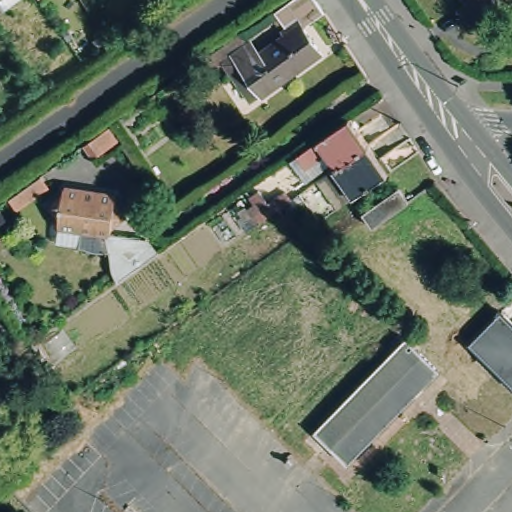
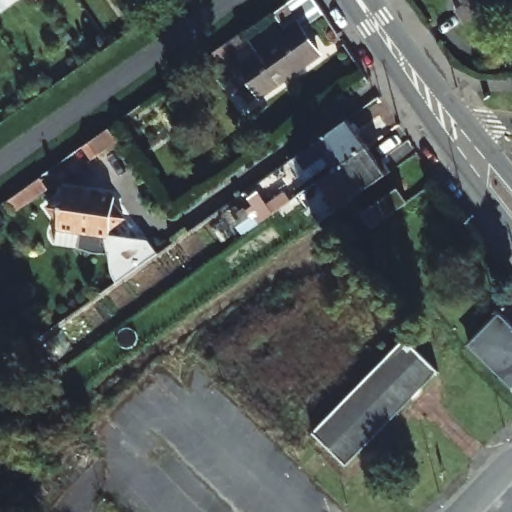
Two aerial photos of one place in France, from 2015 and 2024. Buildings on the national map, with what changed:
unchanged [(29,0),(30,2),(0,24),(0,0),(29,0)]
unchanged [(300,27),(319,54),(249,102),(231,74),(240,67),(233,56),(252,43),(260,55),(290,34),(273,10),(287,0),(316,0),(323,12),(300,27)]
unchanged [(457,14),(468,6),(464,0),(505,0),(467,27),(457,14)]
unchanged [(327,161),(305,177),(295,163),(350,125),(367,151),(335,174),(327,161)]
unchanged [(109,129),(117,141),(94,157),(85,146),(109,129)]
unchanged [(387,179),(352,204),(333,176),(335,174),(367,151),(387,179)]
unchanged [(49,187),(16,210),(9,201),(42,177),(49,187)]
unchanged [(110,277),(108,273),(106,270),(105,266),(105,262),(105,258),(106,255),(109,251),(105,252),(102,253),(97,253),(94,252),(89,252),(85,250),(82,249),(79,246),(74,246),(76,228),(52,225),(54,216),(45,203),(58,192),(59,185),(112,194),(110,201),(121,215),(107,224),(105,232),(135,239),(147,255),(130,267),(112,280),(110,277)]
unchanged [(407,202),(371,226),(361,211),(397,187),(407,202)]
unchanged [(512,387),(470,345),(500,313),(512,326),(512,387)]
unchanged [(439,370),(347,465),(311,431),(404,336),(439,370)]

